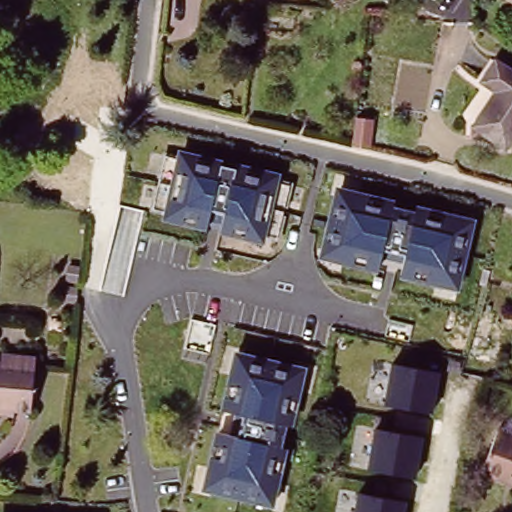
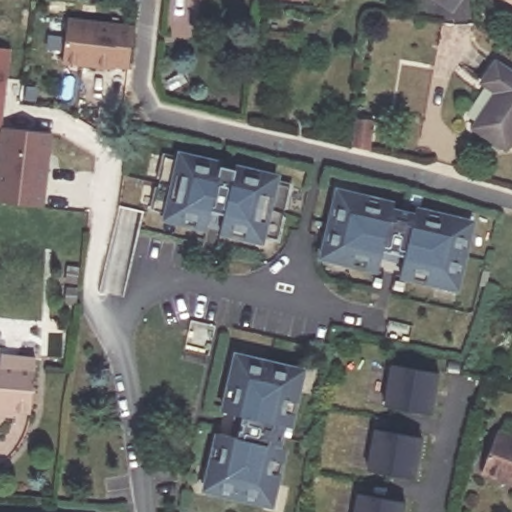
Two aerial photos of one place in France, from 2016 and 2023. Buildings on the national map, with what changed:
unchanged [(512,9),(498,0),(512,0),(512,9)]
new [(65,18),(132,25),(128,67),(112,65),(111,67),(60,63),(65,18)]
new [(11,50),(1,129),(0,129),(0,49),(11,50)]
unchanged [(512,144),(505,154),(473,132),(496,98),(481,88),(495,67),(512,79),(512,144)]
new [(2,129),(52,135),(49,157),(46,156),(44,170),(47,170),(42,209),(0,204),(0,150),(2,129)]
unchanged [(165,220),(147,214),(164,146),(179,150),(281,174),(280,181),(295,185),(282,241),(265,237),(264,243),(220,232),(205,228),(165,220)]
unchanged [(334,188),(474,221),(459,291),(317,256),(334,188)]
unchanged [(200,491),(233,351),(306,367),(275,509),(200,491)]
unchanged [(27,420),(0,420),(0,354),(38,360),(27,420)]
unchanged [(394,361),(440,371),(433,413),(384,403),(394,361)]
unchanged [(424,437),(416,477),(369,469),(375,428),(424,437)]
unchanged [(503,481),(478,471),(494,432),(512,439),(512,482),(504,479),(503,481)]
unchanged [(407,500),(405,512),(358,512),(361,493),(407,500)]

